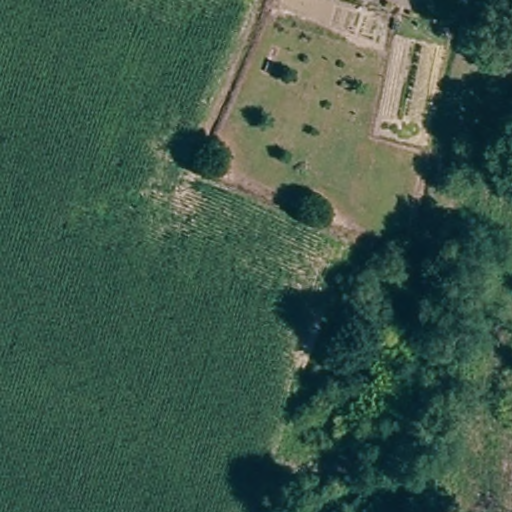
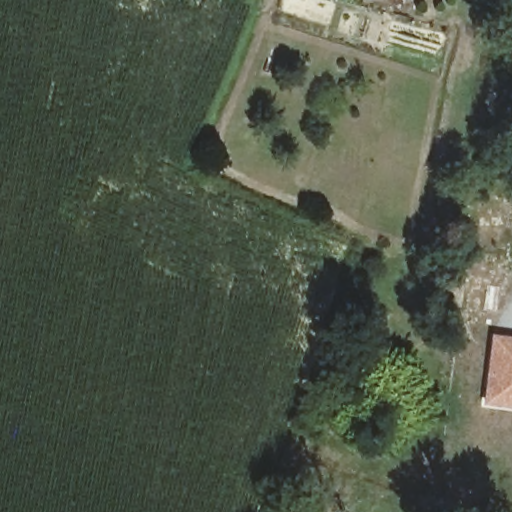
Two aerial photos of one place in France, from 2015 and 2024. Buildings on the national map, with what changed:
new [(512,409),(482,406),(491,335),(512,338),(512,409)]

